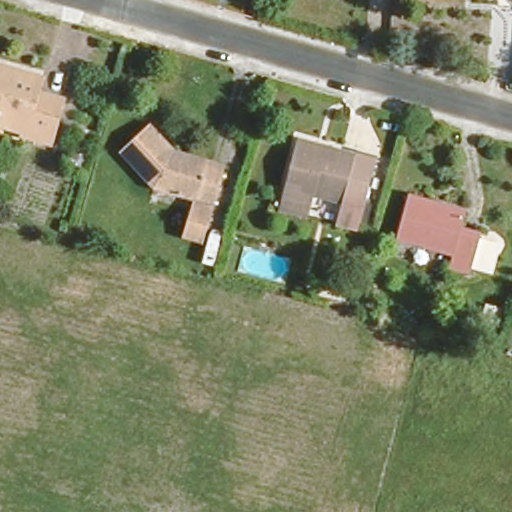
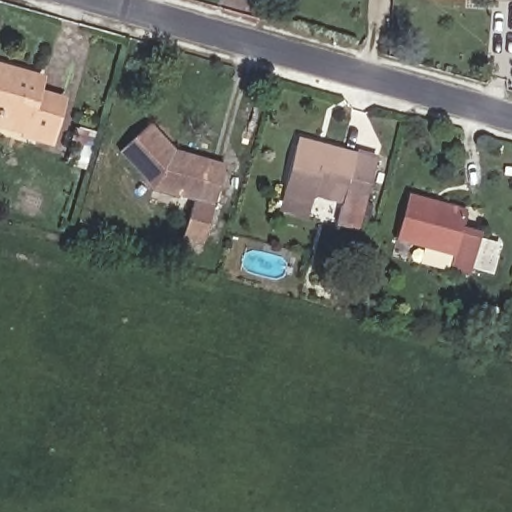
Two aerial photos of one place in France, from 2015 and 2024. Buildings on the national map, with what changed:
unchanged [(36,89),(63,96),(50,140),(23,132),(25,127),(0,121),(0,61),(40,74),(36,89)]
unchanged [(177,232),(190,192),(140,177),(110,147),(140,119),(160,139),(164,141),(222,159),(220,166),(197,239),(177,232)]
unchanged [(341,197),(314,189),(312,197),(282,189),(296,139),(298,131),(326,139),(378,154),(359,221),(336,214),(341,197)]
unchanged [(448,270),(453,253),(394,237),(405,195),(428,201),(428,204),(463,214),(459,231),(478,236),(467,275),(448,270)]

